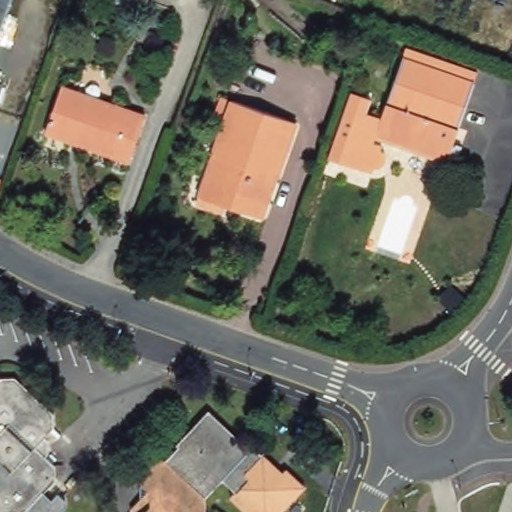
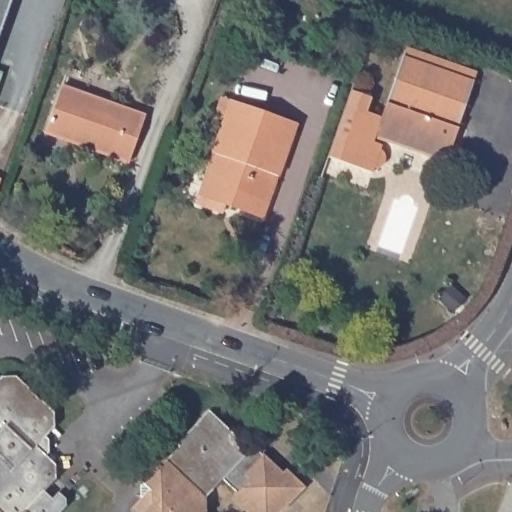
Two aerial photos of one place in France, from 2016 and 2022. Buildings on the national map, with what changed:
unchanged [(0,39),(0,0),(14,0),(0,39)]
unchanged [(142,7),(123,0),(144,0),(142,5),(142,7)]
unchanged [(456,150),(450,168),(370,140),(368,147),(377,150),(375,154),(379,155),(382,158),(383,163),(382,167),(380,171),(377,174),(373,175),(368,174),(367,178),(323,163),(347,95),(365,101),(360,115),(377,121),(397,62),(400,53),(472,79),(469,86),(448,146),(456,150)]
unchanged [(139,120),(124,164),(40,136),(56,92),(139,120)]
unchanged [(212,152),(230,101),(297,124),(279,176),(277,175),(263,216),(199,194),(214,153),(212,152)]
unchanged [(2,178),(0,184),(0,178),(2,178)]
unchanged [(11,377),(47,411),(48,427),(40,436),(45,441),(44,452),(41,455),(50,464),(50,479),(39,491),(47,499),(54,492),(59,497),(60,507),(55,512),(0,512),(0,377),(11,377)]
unchanged [(148,490),(141,484),(136,479),(160,454),(166,460),(179,446),(177,444),(208,410),(249,449),(252,446),(262,455),(263,454),(278,467),(283,472),(286,469),(306,488),(284,512),(282,512),(280,511),(280,512),(249,512),(232,497),(233,495),(236,491),(223,479),(206,497),(206,512),(132,512),(129,510),(148,490)]

